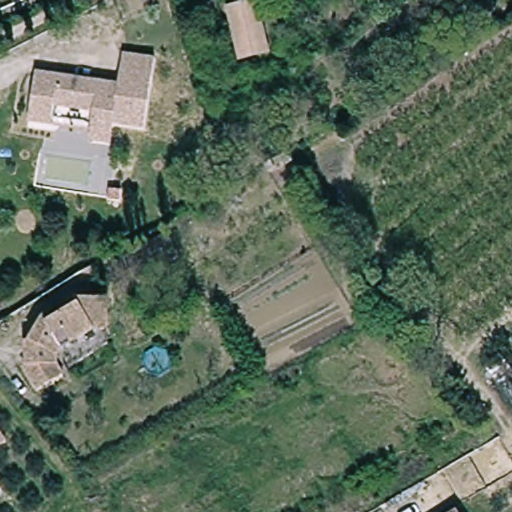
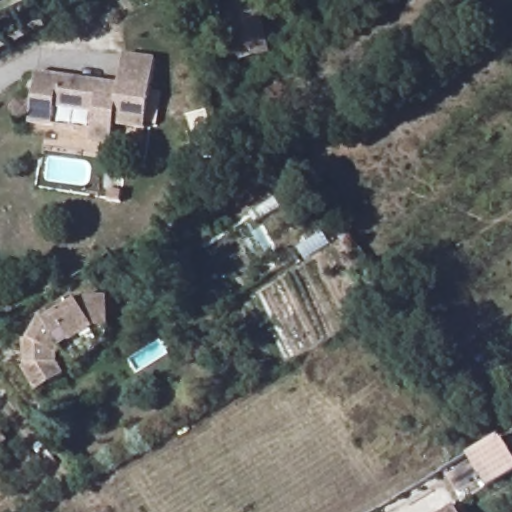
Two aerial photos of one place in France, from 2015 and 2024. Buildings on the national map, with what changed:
unchanged [(480,20),(470,0),(487,0),(493,12),(480,20)]
unchanged [(258,5),(274,54),(247,63),(232,14),(258,5)]
unchanged [(127,55),(159,60),(148,130),(117,125),(117,130),(95,126),(97,113),(58,106),(55,126),(32,122),(40,73),(122,86),(127,55)]
unchanged [(65,351),(60,360),(66,372),(39,390),(25,365),(29,363),(32,342),(37,340),(45,322),(82,300),(109,300),(109,325),(65,351)]
unchanged [(6,442),(0,447),(0,435),(6,442)]
new [(489,489),(471,457),(499,441),(512,457),(512,476),(489,489)]
unchanged [(458,507),(461,512),(449,512),(458,507)]

